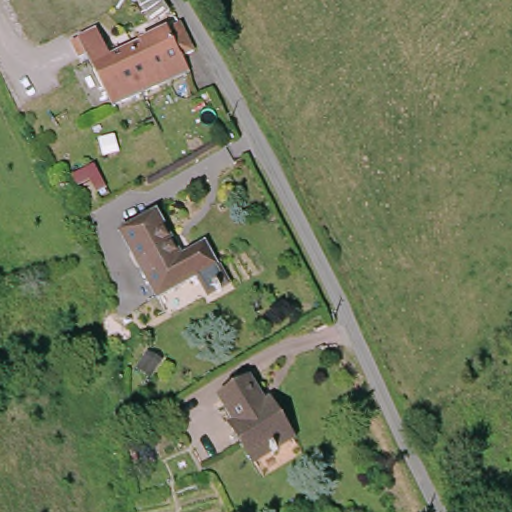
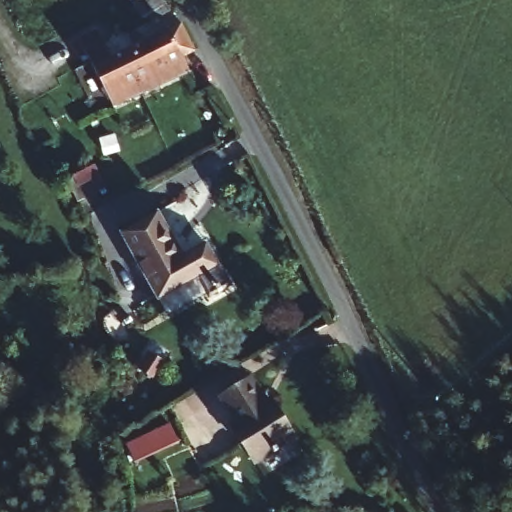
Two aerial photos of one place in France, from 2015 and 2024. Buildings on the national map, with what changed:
unchanged [(153,22),(139,0),(163,0),(170,11),(153,22)]
unchanged [(171,24),(185,50),(182,51),(171,56),(173,60),(163,65),(168,74),(137,90),(131,77),(96,95),(75,52),(90,44),(97,60),(132,42),(171,24)]
unchanged [(112,128),(90,142),(86,134),(107,121),(109,121),(112,128)]
unchanged [(116,152),(103,156),(100,141),(112,137),(116,152)]
unchanged [(84,201),(77,204),(65,180),(71,177),(84,201)]
unchanged [(181,252),(205,239),(228,278),(208,290),(198,272),(158,294),(121,229),(157,208),(181,252)]
unchanged [(145,356),(147,352),(161,361),(159,365),(150,377),(136,368),(145,356)]
unchanged [(266,404),(271,401),(295,437),(253,463),(230,426),(235,422),(220,397),(250,378),(266,404)]

